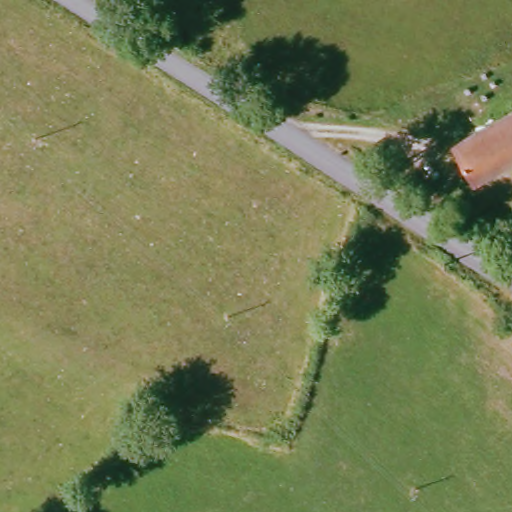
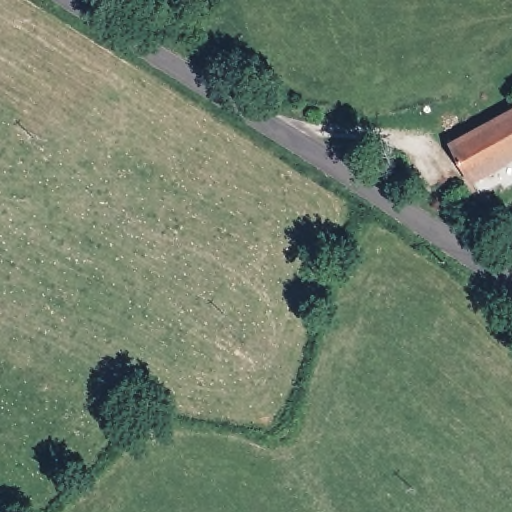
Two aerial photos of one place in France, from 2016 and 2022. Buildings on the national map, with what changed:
unchanged [(475,189),(452,150),(512,118),(512,169),(475,189)]

